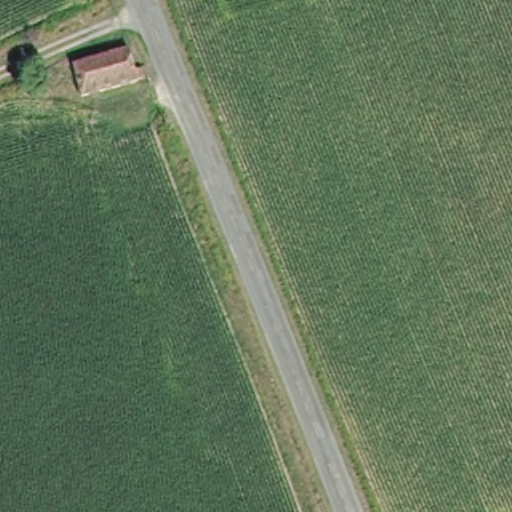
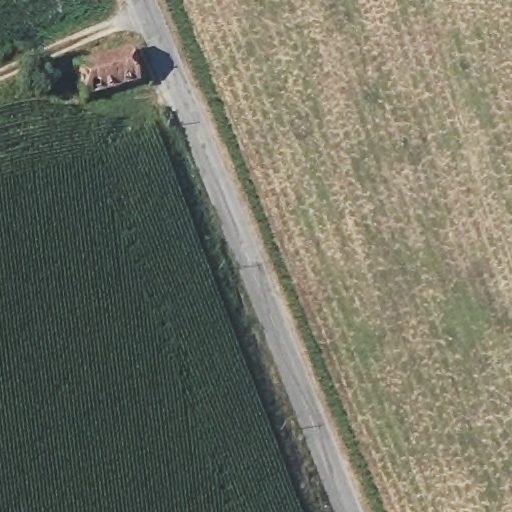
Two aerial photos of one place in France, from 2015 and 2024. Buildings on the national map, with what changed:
unchanged [(70,66),(127,50),(136,76),(78,94),(70,66)]

